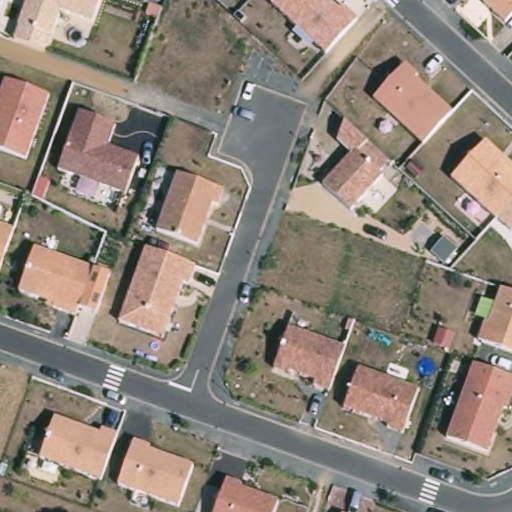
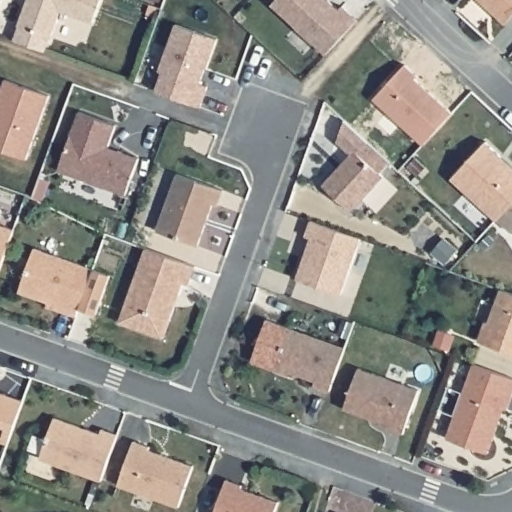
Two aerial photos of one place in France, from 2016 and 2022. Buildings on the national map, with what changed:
unchanged [(100,0),(92,25),(57,14),(49,38),(15,27),(23,0),(100,0)]
unchanged [(276,0),(329,0),(338,9),(342,5),(358,21),(325,54),(272,5),(276,0)]
unchanged [(473,0),(512,0),(512,15),(501,26),(473,0)]
new [(162,73),(159,71),(176,25),(217,40),(206,70),(205,69),(199,85),(207,87),(200,107),(155,91),(162,73)]
unchanged [(404,67),(417,80),(414,83),(451,115),(420,147),(374,101),(404,67)]
unchanged [(2,83),(46,98),(25,159),(0,152),(0,89),(2,83)]
unchanged [(57,172),(76,115),(112,127),(106,149),(138,159),(124,194),(57,172)]
unchanged [(364,144),(389,165),(349,210),(323,186),(364,144)]
unchanged [(512,229),(496,215),(453,176),(486,144),(512,167),(512,229)]
unchanged [(176,177),(220,190),(215,209),(210,207),(199,244),(157,232),(176,177)]
new [(311,239),(305,236),(311,221),(361,239),(340,295),(296,279),(311,239)]
unchanged [(0,269),(0,225),(15,230),(0,269)]
unchanged [(77,317),(53,308),(55,305),(20,292),(36,249),(94,270),(77,317)]
unchanged [(141,250),(194,266),(188,288),(182,287),(164,339),(117,324),(141,250)]
unchanged [(484,322),(489,323),(500,287),(512,292),(512,351),(479,340),(484,322)]
unchanged [(274,367),(291,325),(348,347),(331,391),(274,367)]
unchanged [(387,427),(388,423),(344,407),(359,366),(420,387),(405,430),(387,427)]
unchanged [(466,382),(510,397),(486,455),(445,439),(466,382)]
new [(24,399),(9,443),(0,440),(0,391),(24,399)]
unchanged [(96,435),(99,429),(114,435),(101,481),(42,460),(55,419),(96,435)]
unchanged [(176,507),(118,489),(134,442),(150,447),(149,453),(193,468),(176,507)]
unchanged [(224,481),(241,485),(239,491),(276,502),(273,512),(213,512),(224,481)]

